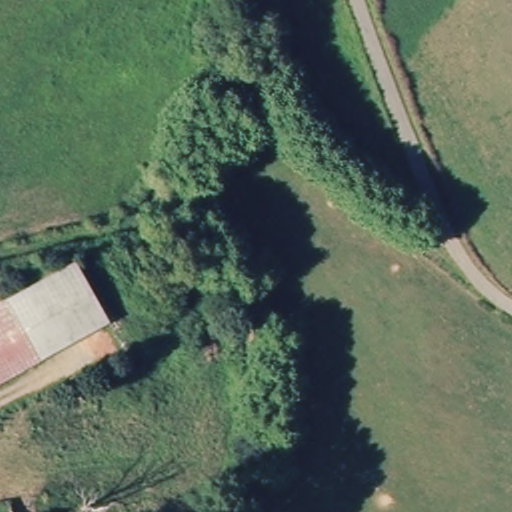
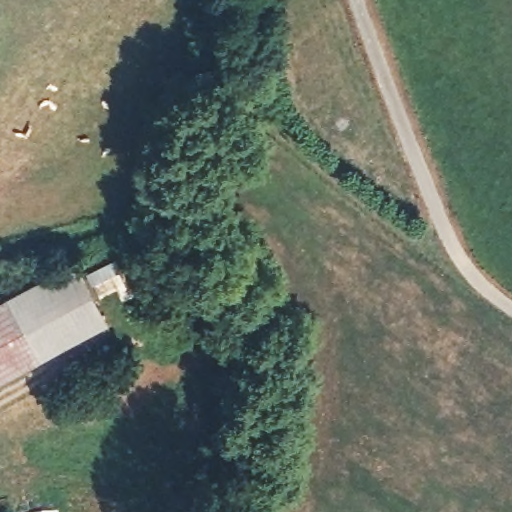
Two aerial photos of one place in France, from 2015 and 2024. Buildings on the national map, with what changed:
unchanged [(60,273),(64,271),(76,265),(80,273),(99,308),(30,344),(9,300),(60,273)]
unchanged [(0,380),(0,305),(9,300),(30,344),(39,360),(0,380)]
unchanged [(11,512),(0,512),(0,505),(10,504),(11,512)]

